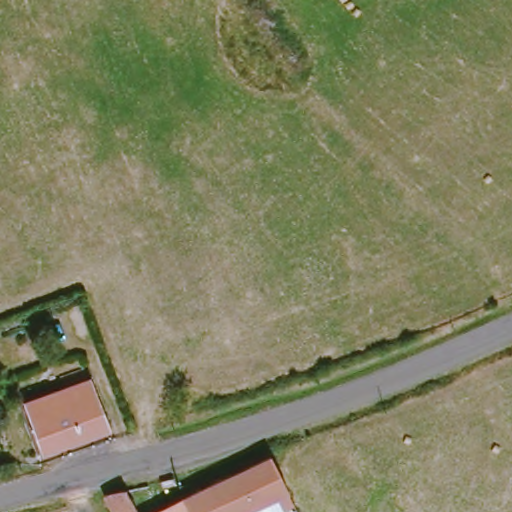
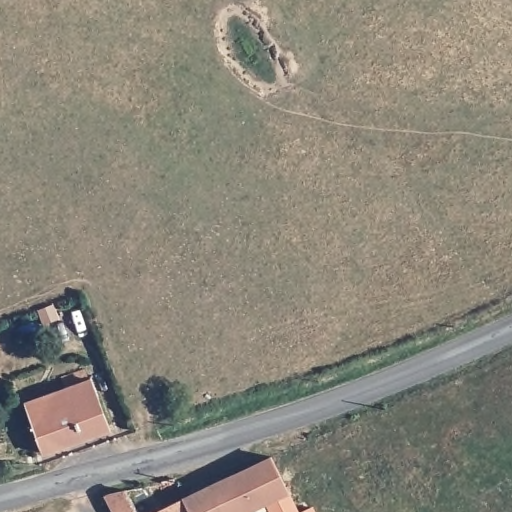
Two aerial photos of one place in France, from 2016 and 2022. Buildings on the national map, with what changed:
unchanged [(46,460),(28,411),(93,386),(112,435),(46,460)]
unchanged [(252,512),(109,512),(102,497),(144,485),(157,511),(271,455),(289,493),(252,512)]

